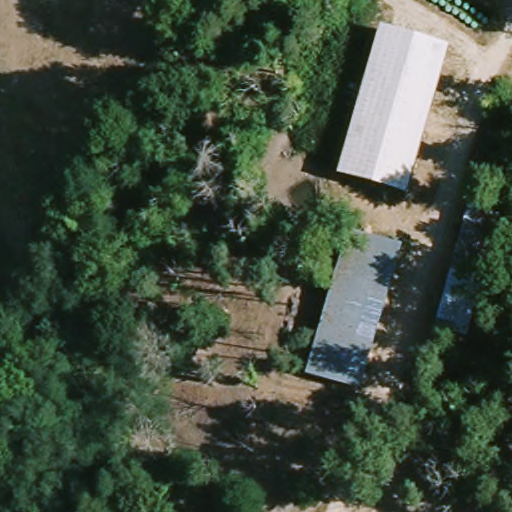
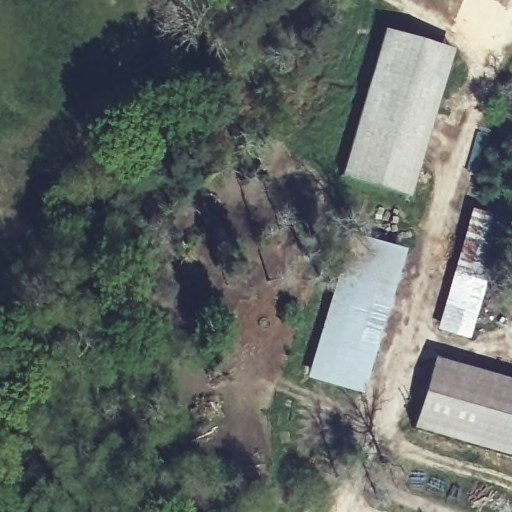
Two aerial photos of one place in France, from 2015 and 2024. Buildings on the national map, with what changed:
unchanged [(452,52),(409,197),(341,178),(382,32),(452,52)]
unchanged [(475,195),(507,205),(466,344),(435,333),(475,195)]
unchanged [(337,274),(350,236),(406,250),(393,295),(337,274)]
unchanged [(393,295),(361,396),(305,378),(337,274),(393,295)]
new [(512,458),(411,429),(432,359),(512,382),(512,458)]

